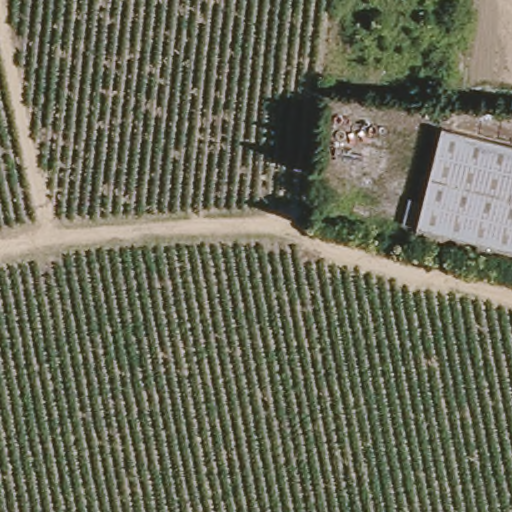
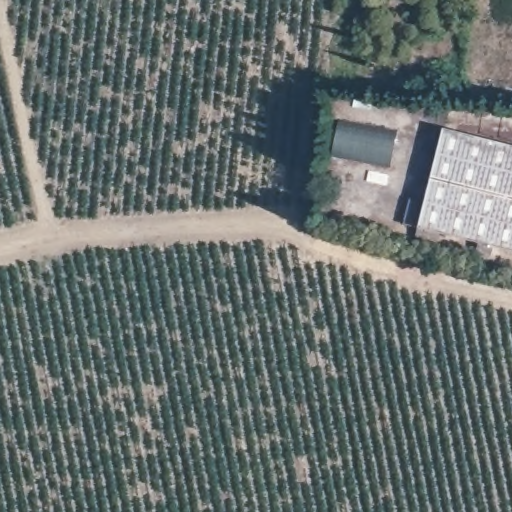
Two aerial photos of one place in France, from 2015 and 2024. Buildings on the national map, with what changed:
new [(397,132),(391,164),(333,153),(339,122),(397,132)]
unchanged [(427,202),(447,129),(512,145),(512,249),(406,223),(411,198),(427,202)]

